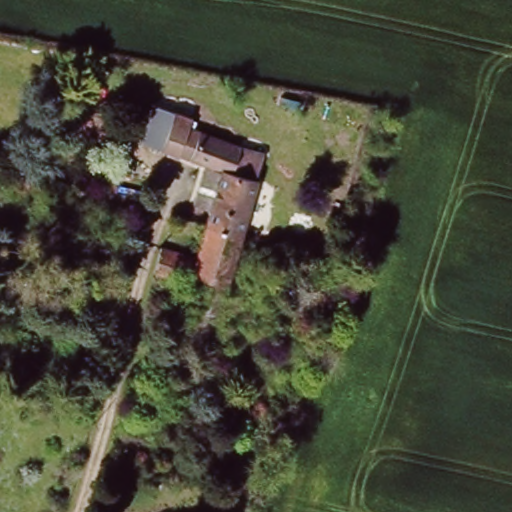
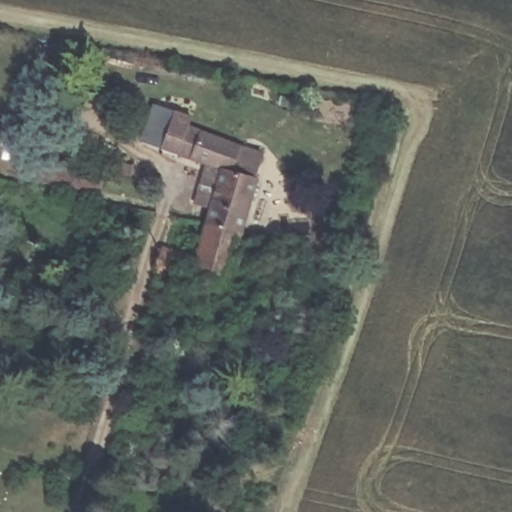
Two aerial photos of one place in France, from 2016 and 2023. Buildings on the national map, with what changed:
unchanged [(185,156),(156,147),(158,139),(164,109),(188,115),(184,129),(194,131),(235,143),(234,146),(258,153),(251,175),(258,177),(252,200),(244,198),(236,231),(205,223),(221,167),(185,156)]
unchanged [(128,264),(88,252),(100,202),(143,213),(128,264)]
unchanged [(158,245),(196,256),(205,223),(236,231),(221,290),(202,285),(149,270),(158,245)]
unchanged [(208,339),(189,333),(202,285),(221,290),(208,339)]

